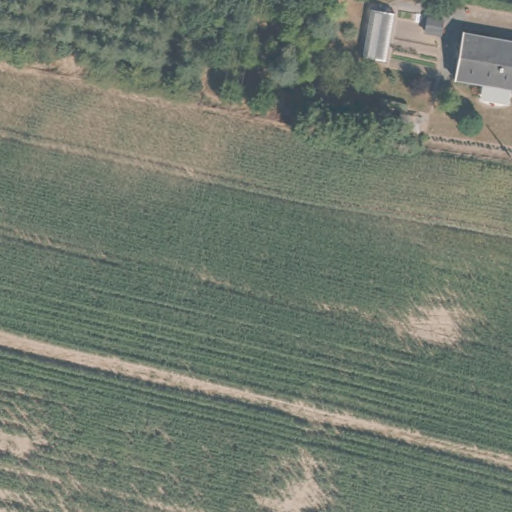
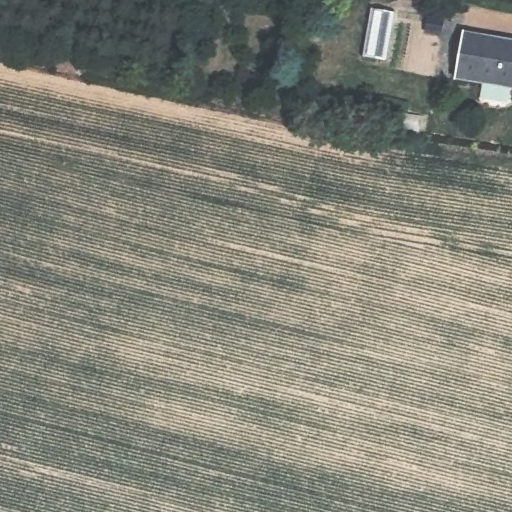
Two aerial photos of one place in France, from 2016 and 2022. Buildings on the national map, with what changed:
unchanged [(512,41),(512,88),(455,78),(464,32),(512,41)]

